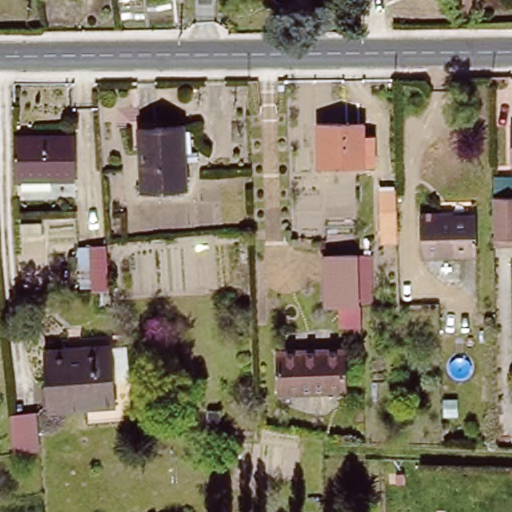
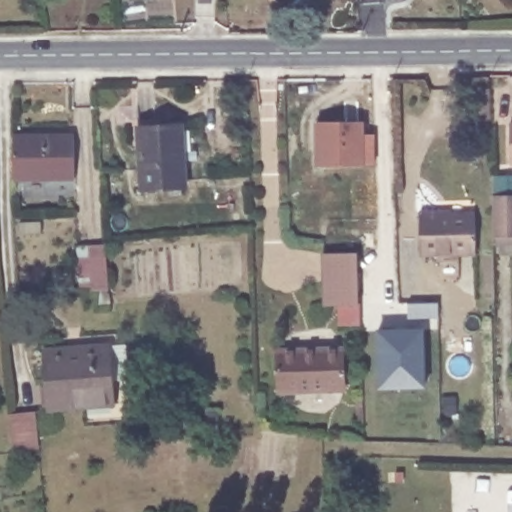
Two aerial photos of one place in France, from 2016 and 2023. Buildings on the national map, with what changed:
unchanged [(316,172),(316,130),(364,129),(364,142),(370,142),(371,171),(316,172)]
unchanged [(143,197),(139,134),(183,132),(186,194),(143,197)]
unchanged [(14,180),(14,137),(73,137),(75,179),(14,180)]
unchanged [(498,225),(497,182),(512,182),(512,233),(498,234),(498,225)]
demolished [(379,207),(379,191),(396,191),(396,206),(397,243),(381,244),(379,207)]
unchanged [(424,218),(449,217),(457,217),(457,223),(481,222),(482,261),(426,262),(424,218)]
unchanged [(104,289),(93,290),(90,245),(106,244),(109,288),(110,295),(104,295),(104,289)]
unchanged [(343,328),(341,311),(332,311),(331,261),(362,261),(362,328),(343,328)]
new [(378,391),(376,328),(425,328),(428,388),(378,391)]
unchanged [(49,411),(44,352),(110,347),(115,406),(49,411)]
unchanged [(285,398),(283,358),(348,355),(349,397),(285,398)]
unchanged [(205,427),(205,412),(216,412),(216,427),(215,438),(205,438),(205,427)]

